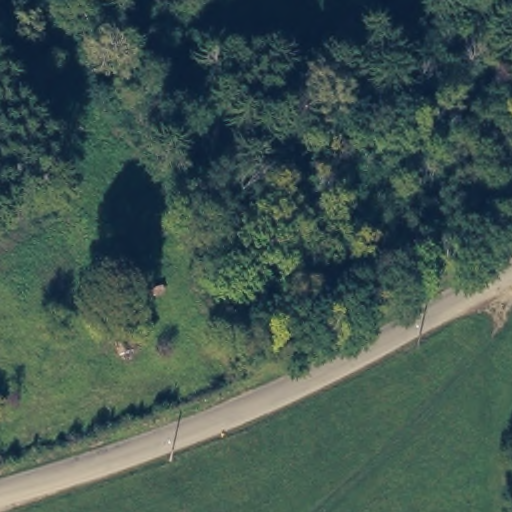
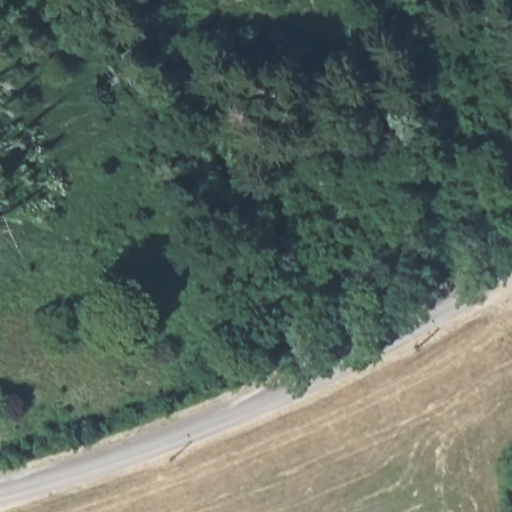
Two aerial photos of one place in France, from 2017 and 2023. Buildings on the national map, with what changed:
unchanged [(136,349),(119,355),(113,340),(124,335),(123,333),(121,327),(128,325),(129,330),(131,333),(136,349)]

